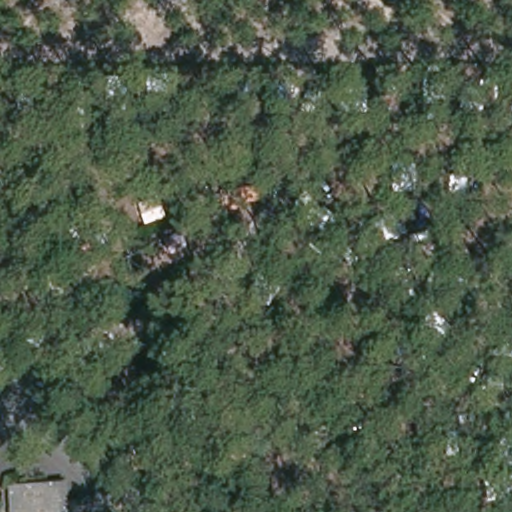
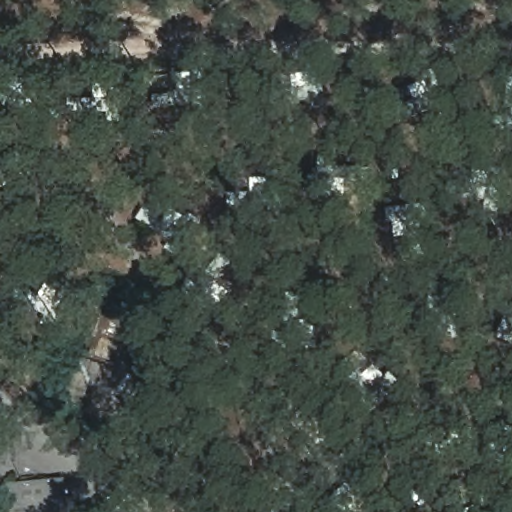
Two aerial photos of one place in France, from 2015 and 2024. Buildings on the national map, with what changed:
unchanged [(62,479),(67,512),(11,512),(11,483),(62,479)]

